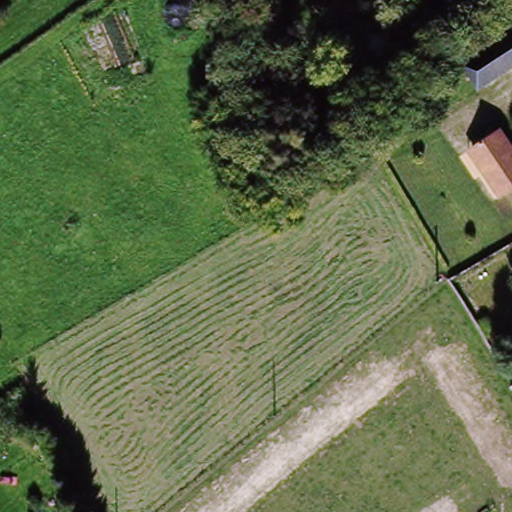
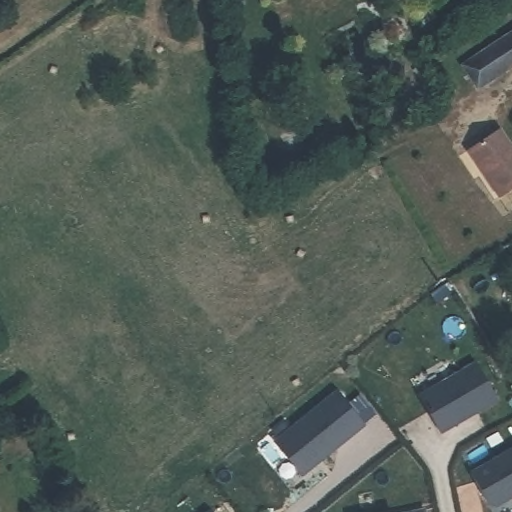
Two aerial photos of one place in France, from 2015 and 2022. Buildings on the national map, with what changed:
unchanged [(471,96),(462,78),(512,44),(512,68),(471,96)]
unchanged [(512,151),(512,187),(497,197),(469,149),(499,131),(512,151)]
new [(474,363),(496,401),(441,433),(419,396),(474,363)]
new [(300,477),(270,441),(334,390),(364,426),(300,477)]
new [(512,448),(512,495),(492,507),(487,505),(469,475),(512,448)]
new [(201,510),(203,512),(199,512),(201,510)]

